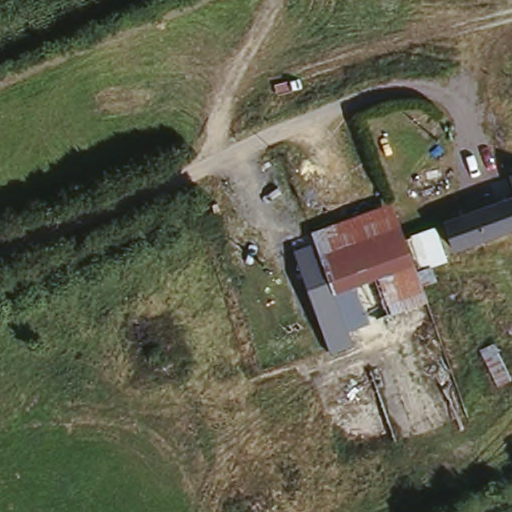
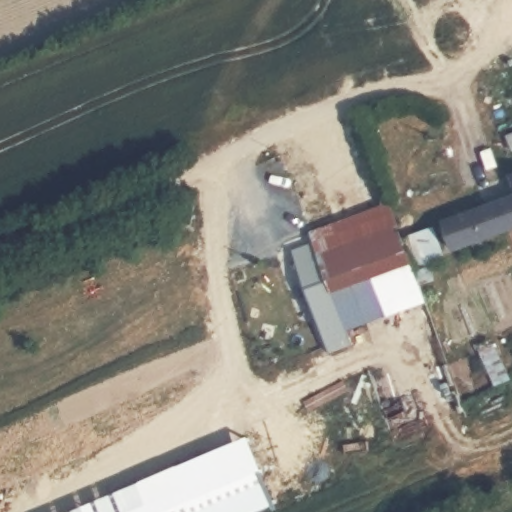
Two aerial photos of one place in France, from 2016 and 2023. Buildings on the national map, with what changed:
unchanged [(511,167),(512,166),(512,171),(511,167)]
unchanged [(459,244),(448,217),(512,190),(512,223),(459,244)]
unchanged [(426,301),(347,328),(354,344),(330,355),(313,309),(293,252),(315,242),(313,237),(392,205),(426,301)]
unchanged [(175,357),(153,364),(145,343),(168,335),(175,357)]
new [(249,437),(279,505),(262,512),(72,512),(140,485),(249,437)]

